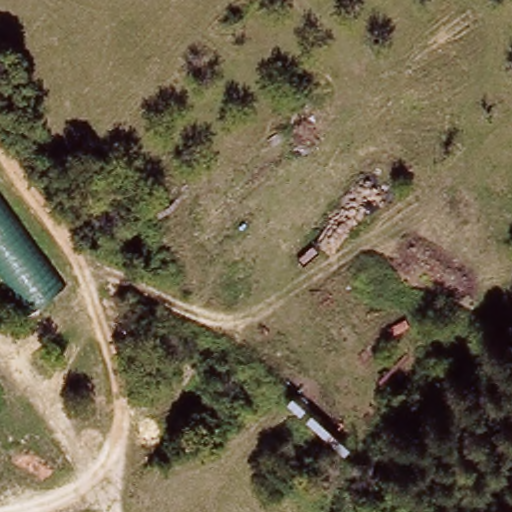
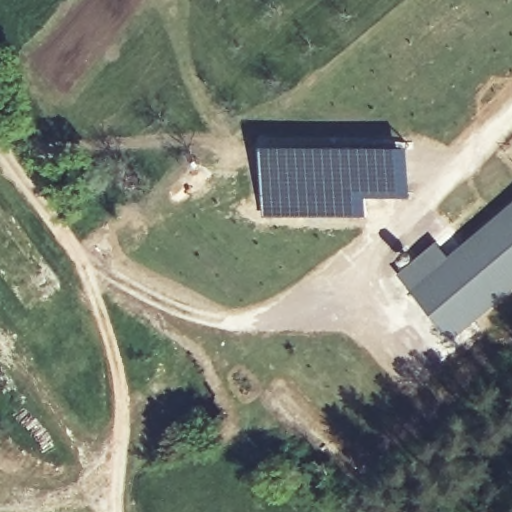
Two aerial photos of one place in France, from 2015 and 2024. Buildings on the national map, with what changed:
new [(264,194),(264,143),(366,144),(366,194),(264,194)]
demolished [(40,311),(0,266),(0,195),(37,235),(76,279),(40,311)]
new [(451,260),(512,207),(512,290),(454,340),(400,277),(427,253),(438,244),(451,260)]
demolished [(5,317),(0,321),(0,310),(5,317)]

